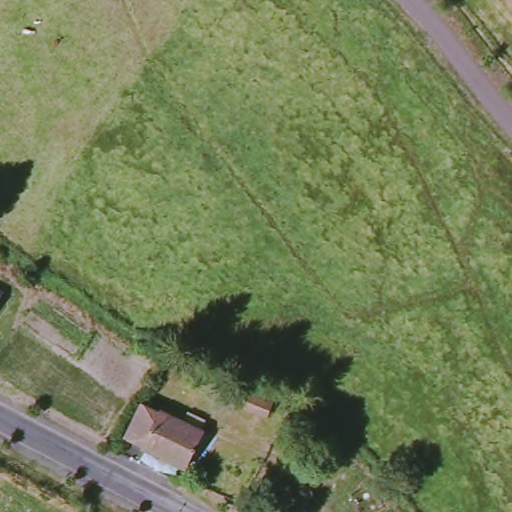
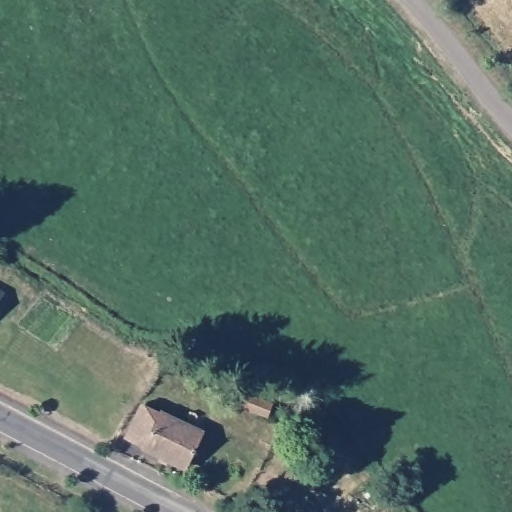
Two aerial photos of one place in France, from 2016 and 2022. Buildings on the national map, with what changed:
unchanged [(0,300),(0,286),(6,289),(0,300)]
unchanged [(261,429),(240,418),(248,405),(269,416),(261,429)]
unchanged [(184,472),(127,443),(145,409),(203,440),(184,472)]

